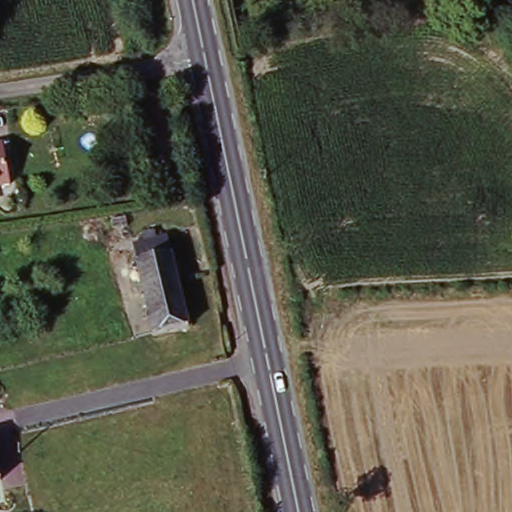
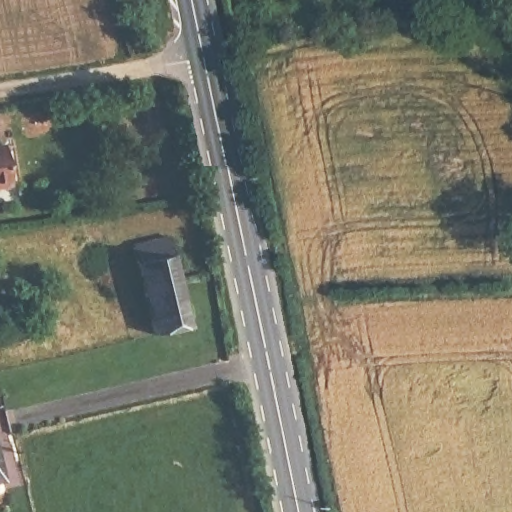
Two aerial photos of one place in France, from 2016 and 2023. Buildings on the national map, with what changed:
unchanged [(2,145),(9,185),(0,186),(0,145),(2,145)]
unchanged [(206,322),(189,325),(156,333),(135,245),(168,238),(178,280),(195,276),(206,322)]

